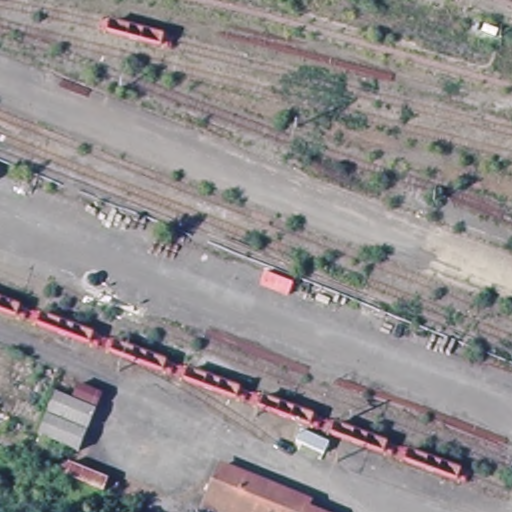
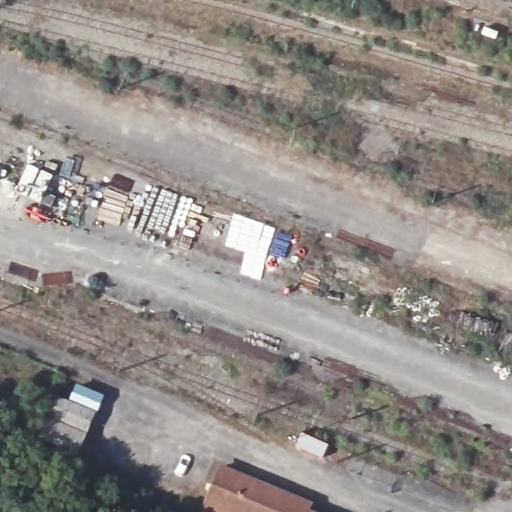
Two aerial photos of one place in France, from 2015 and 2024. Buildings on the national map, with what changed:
unchanged [(105,397),(99,409),(77,399),(81,387),(105,397)]
unchanged [(97,414),(90,431),(51,415),(59,397),(97,414)]
unchanged [(89,435),(81,454),(42,438),(49,419),(89,435)]
unchanged [(213,468),(301,504),(299,509),(306,512),(207,512),(196,507),(199,500),(213,468)]

